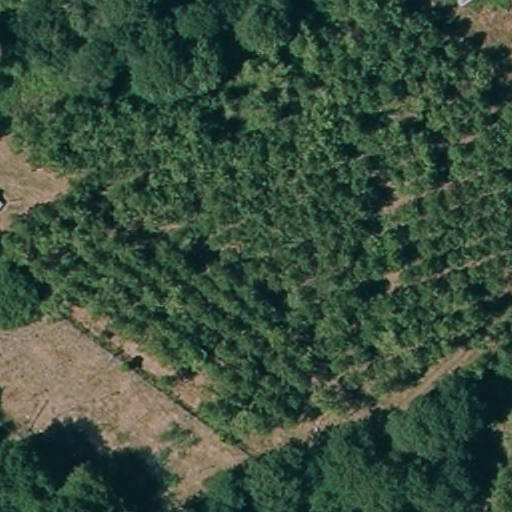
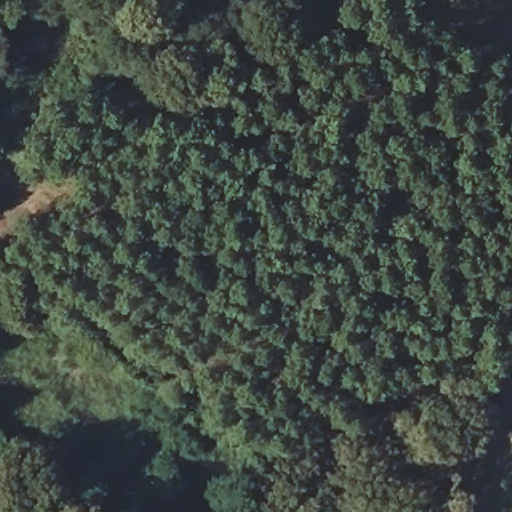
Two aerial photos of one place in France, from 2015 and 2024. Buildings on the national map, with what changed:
unchanged [(0,206),(0,201),(2,203),(0,206)]

